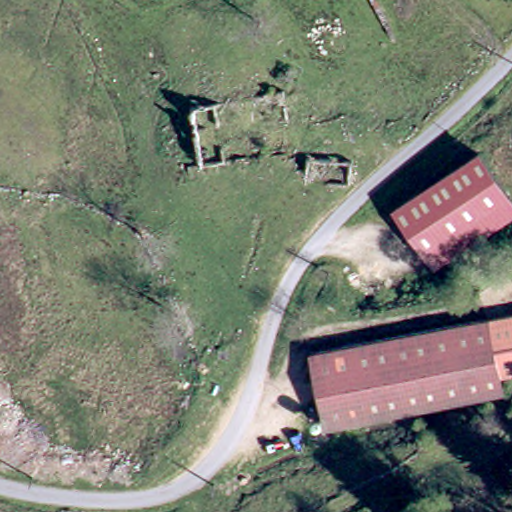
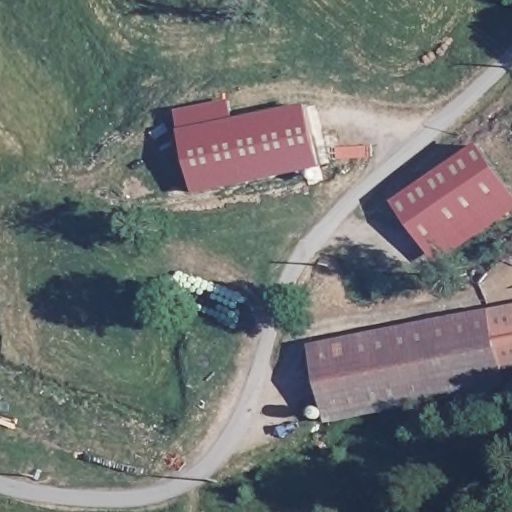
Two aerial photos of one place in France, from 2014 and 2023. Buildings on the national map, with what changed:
new [(232,100),(235,119),(310,102),(322,169),(196,196),(184,130),(180,111),(232,100)]
unchanged [(481,150),(512,193),(512,213),(436,262),(400,201),(481,150)]
unchanged [(506,370),(510,385),(336,430),(317,357),(512,303),(512,368),(506,370)]

